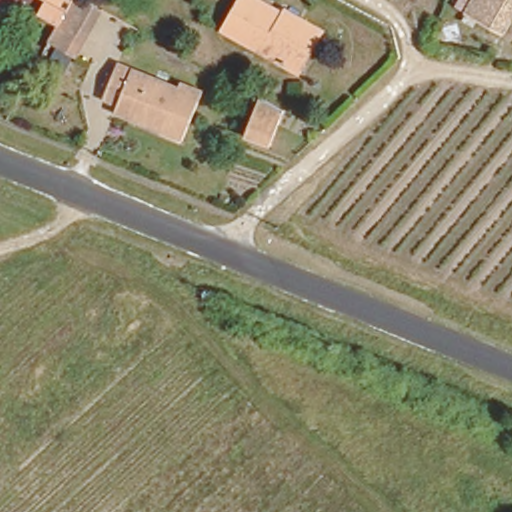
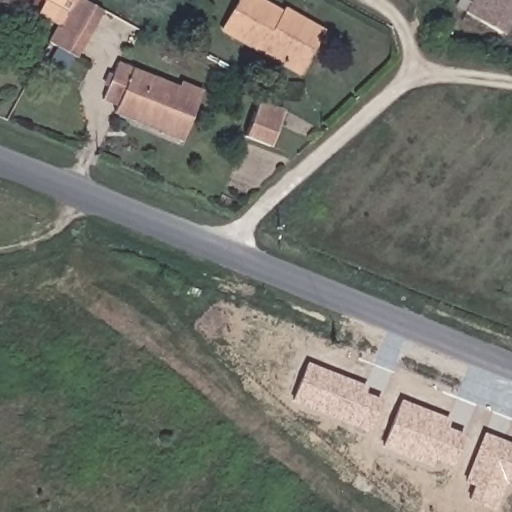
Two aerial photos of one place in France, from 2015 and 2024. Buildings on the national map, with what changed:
unchanged [(60,10),(41,0),(82,0),(91,4),(80,23),(95,29),(81,61),(63,54),(74,35),(52,23),(60,10)]
unchanged [(222,29),(239,0),(258,0),(318,33),(297,70),(222,29)]
unchanged [(463,10),(470,0),(512,0),(512,13),(500,33),(463,10)]
demolished [(132,52),(95,36),(105,13),(141,29),(132,52)]
unchanged [(182,141),(114,114),(117,104),(102,99),(117,64),(180,88),(182,83),(202,91),(182,141)]
unchanged [(263,152),(237,138),(258,100),(285,114),(263,152)]
new [(370,432),(292,402),(307,362),(368,386),(366,393),(382,399),(370,432)]
new [(452,466),(435,459),(432,467),(382,448),(402,399),(452,420),(448,428),(466,435),(452,466)]
new [(496,510),(468,500),(473,485),(464,482),(484,432),(512,443),(512,488),(507,485),(496,510)]

